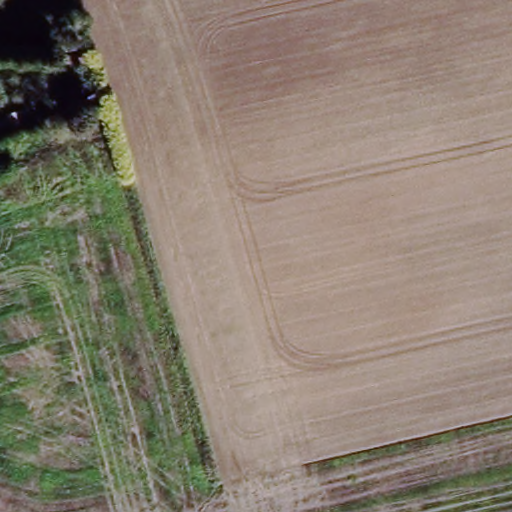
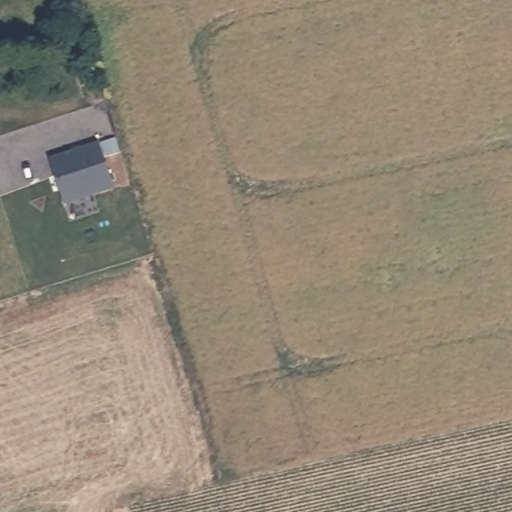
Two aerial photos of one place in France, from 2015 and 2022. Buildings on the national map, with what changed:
unchanged [(0,135),(0,116),(34,110),(38,129),(0,135)]
new [(114,189),(63,206),(49,159),(98,142),(114,189)]

